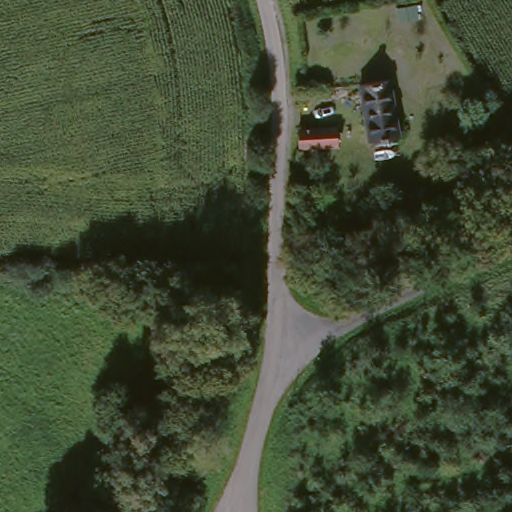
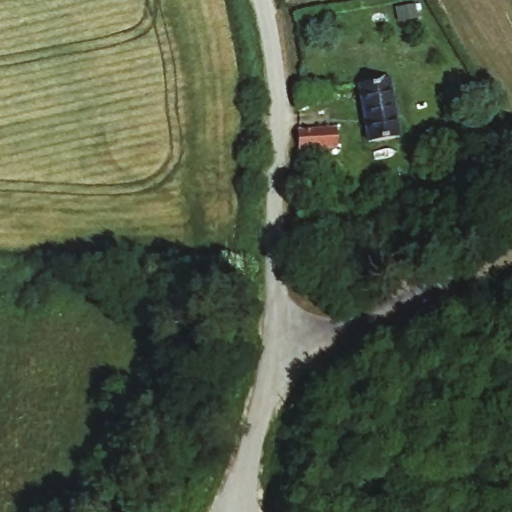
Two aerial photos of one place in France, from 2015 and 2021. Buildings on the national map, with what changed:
unchanged [(368,142),(353,80),(384,77),(398,137),(368,142)]
unchanged [(336,144),(303,149),(303,124),(331,121),(336,144)]

